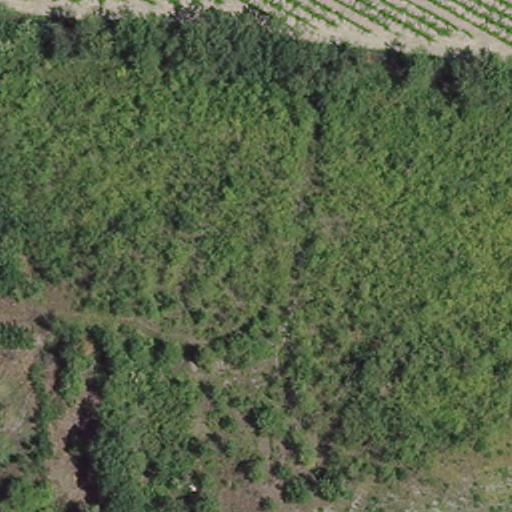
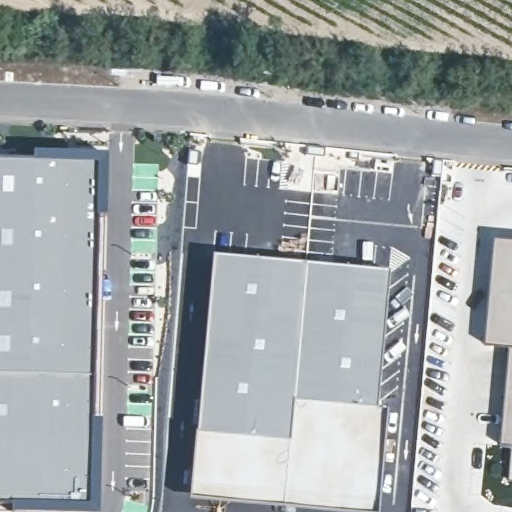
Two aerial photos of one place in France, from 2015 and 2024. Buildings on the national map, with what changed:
new [(96,162),(96,193),(97,224),(99,224),(100,277),(98,340),(92,418),(102,419),(98,512),(9,512),(9,505),(0,505),(0,160),(32,161),(96,162)]
new [(502,446),(512,347),(488,344),(497,238),(512,239),(512,446),(502,446)]
new [(212,255),(390,272),(380,367),(379,409),(383,409),(382,443),(373,512),(328,512),(250,506),(187,499),(212,255)]

